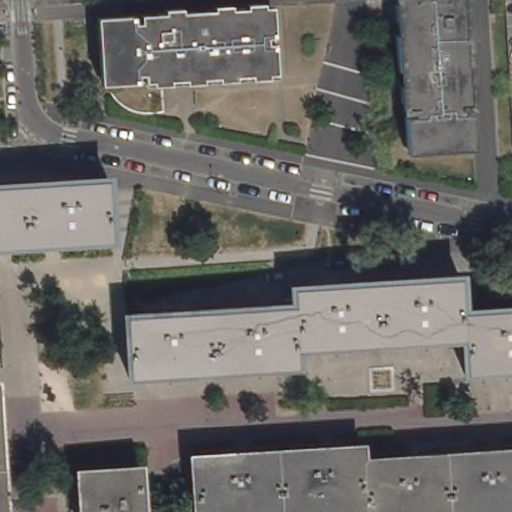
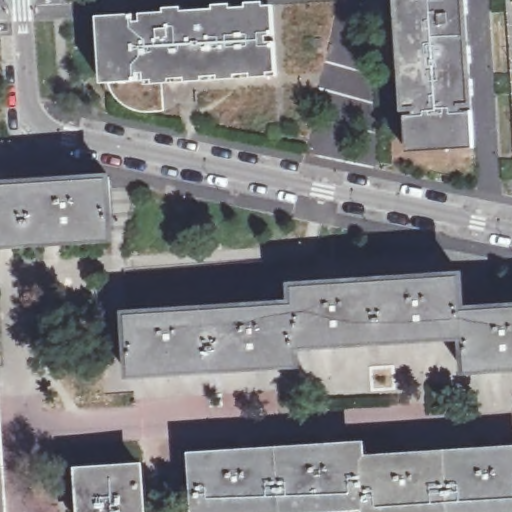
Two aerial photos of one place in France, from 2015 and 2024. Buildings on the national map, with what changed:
unchanged [(400,34),(399,0),(466,0),(473,119),(475,143),(408,147),(403,69),(400,34)]
unchanged [(225,75),(205,76),(192,77),(190,78),(175,79),(159,80),(158,80),(160,110),(152,112),(145,112),(137,112),(128,110),(122,106),(115,102),(110,96),(107,90),(104,83),(103,83),(100,48),(98,16),(100,15),(115,15),(124,14),(127,14),(155,12),(185,10),(186,10),(200,10),(204,9),(235,7),(237,7),(250,6),(263,5),(265,5),(265,14),(267,27),(267,35),(267,41),(270,72),(255,74),(241,75),(238,75),(225,75)]
unchanged [(108,179),(109,178),(113,240),(62,244),(0,247),(0,185),(50,182),(108,179)]
unchanged [(127,315),(295,303),(293,286),(460,275),(462,310),(512,308),(512,369),(482,370),(467,371),(465,338),(297,348),(298,365),(284,366),(247,368),(215,370),(182,372),(147,375),(132,375),(127,315)]
unchanged [(13,415),(16,452),(15,452),(9,453),(3,453),(4,466),(6,498),(12,497),(19,497),(20,512),(0,512),(0,415),(7,415),(13,415)]
unchanged [(366,512),(366,508),(305,512),(198,512),(195,457),(238,454),(253,453),(320,448),(336,447),(362,446),(362,460),(406,457),(421,456),(488,452),(504,451),(512,450),(512,512),(366,512)]
unchanged [(141,462),(144,512),(81,512),(78,466),(141,462)]

